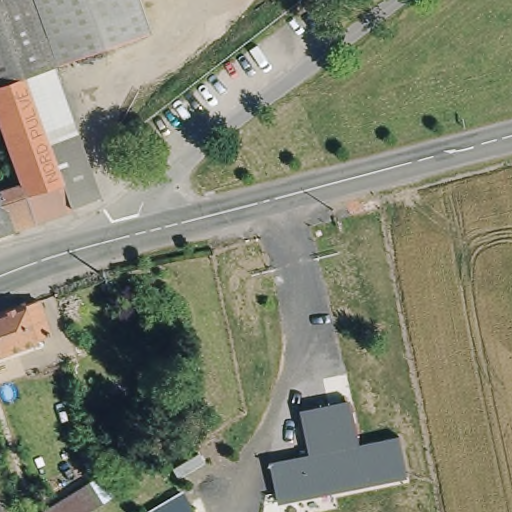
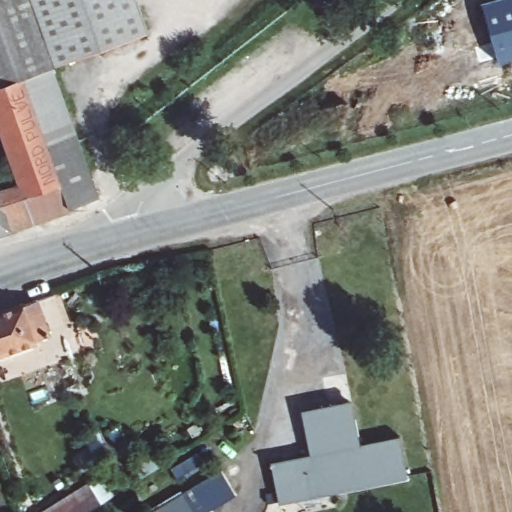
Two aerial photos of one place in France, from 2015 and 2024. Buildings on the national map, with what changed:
unchanged [(0,79),(0,0),(30,0),(52,61),(0,79)]
unchanged [(30,0),(136,0),(148,34),(54,66),(52,61),(30,0)]
new [(489,0),(512,0),(512,58),(499,62),(482,2),(489,0)]
unchanged [(52,61),(99,190),(88,199),(31,219),(17,177),(0,126),(0,79),(52,61)]
unchanged [(17,177),(31,219),(0,231),(0,183),(17,177)]
unchanged [(39,296),(49,329),(0,347),(0,310),(39,296)]
unchanged [(311,454),(302,411),(351,401),(361,442),(400,436),(408,478),(279,504),(271,464),(311,454)]
unchanged [(220,473),(233,499),(210,512),(148,512),(220,473)]
unchanged [(87,475),(101,496),(77,512),(30,512),(87,475)]

